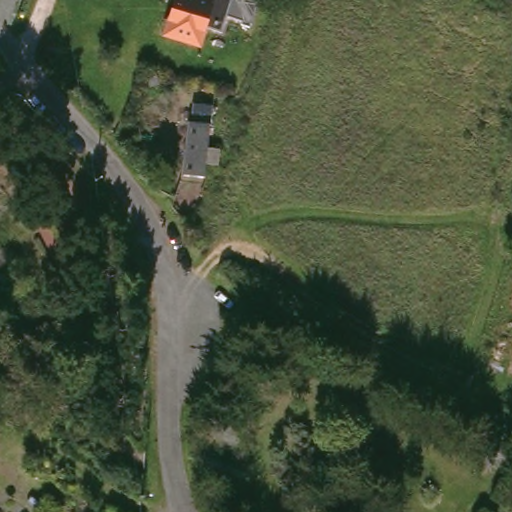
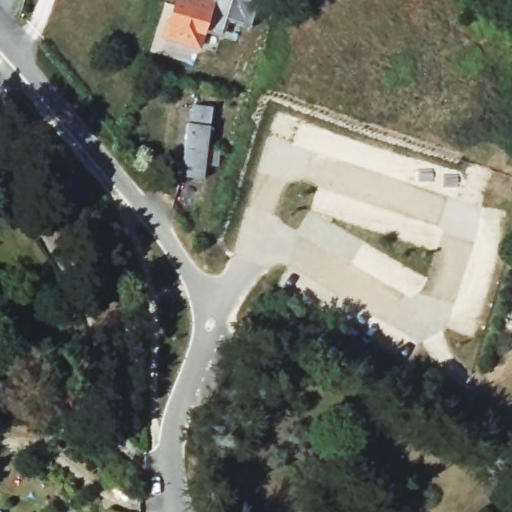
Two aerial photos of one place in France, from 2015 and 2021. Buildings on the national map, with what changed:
unchanged [(165,38),(177,0),(213,0),(198,48),(165,38)]
unchanged [(215,168),(205,167),(203,181),(180,178),(187,124),(191,124),(193,108),(211,109),(209,126),(207,147),(206,152),(217,153),(215,168)]

